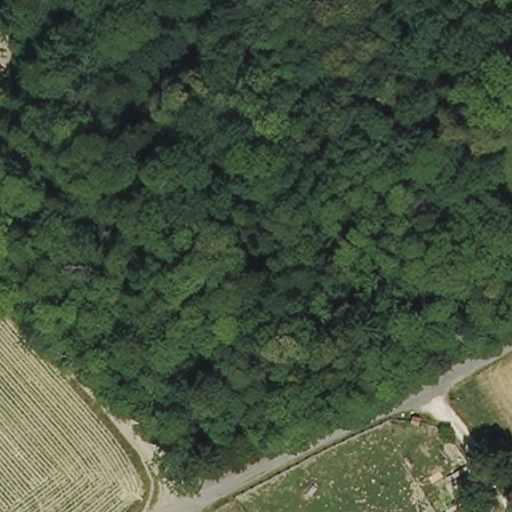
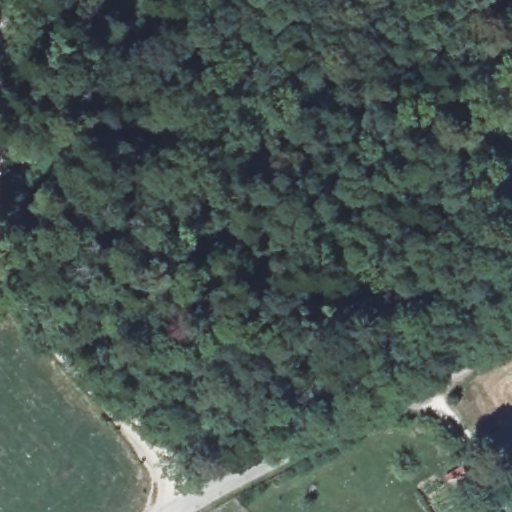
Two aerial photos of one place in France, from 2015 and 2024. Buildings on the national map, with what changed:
[]

